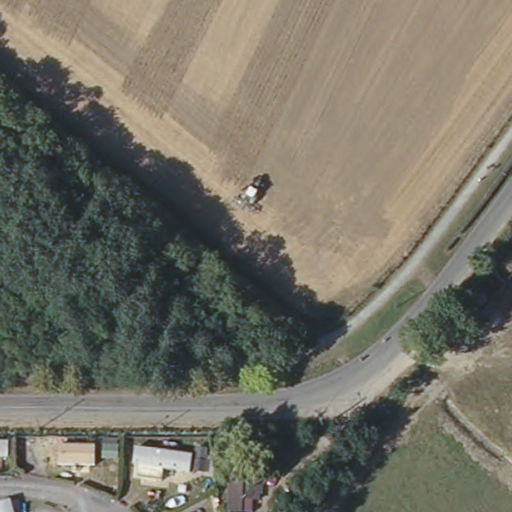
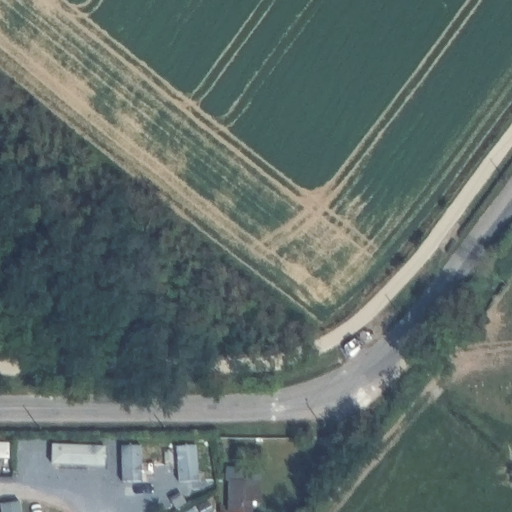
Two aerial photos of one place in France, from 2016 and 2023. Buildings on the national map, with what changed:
[]

